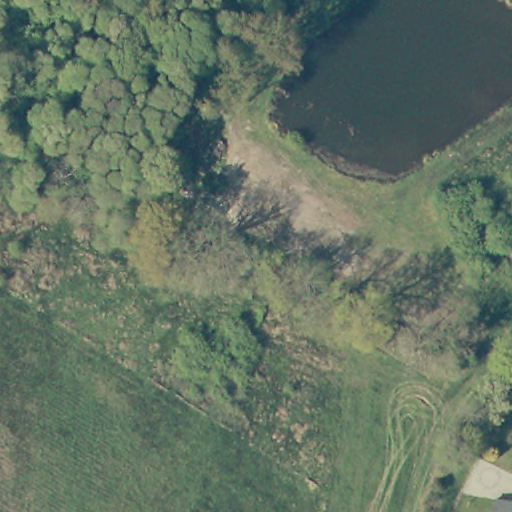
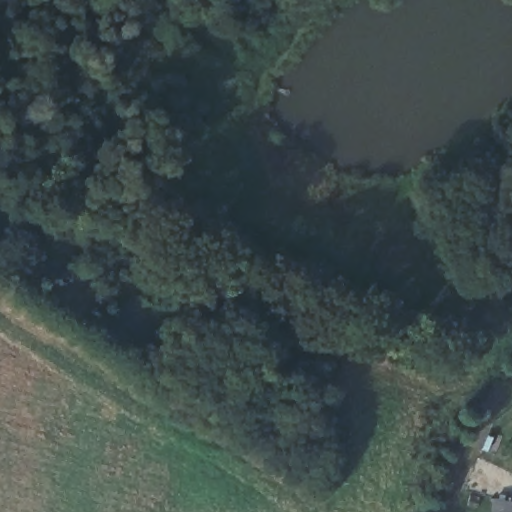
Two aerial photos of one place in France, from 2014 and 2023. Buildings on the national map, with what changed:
unchanged [(512,501),(512,512),(494,512),(497,497),(512,501)]

